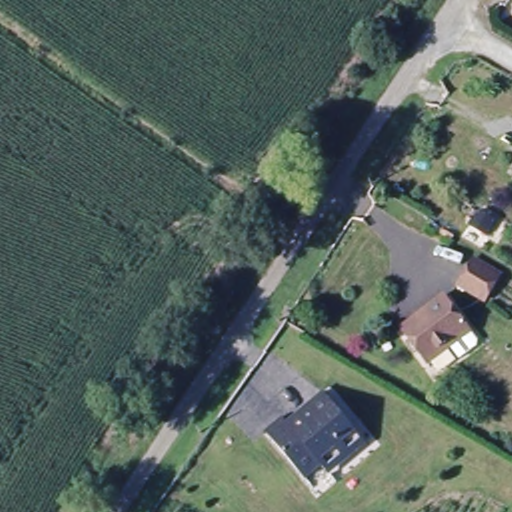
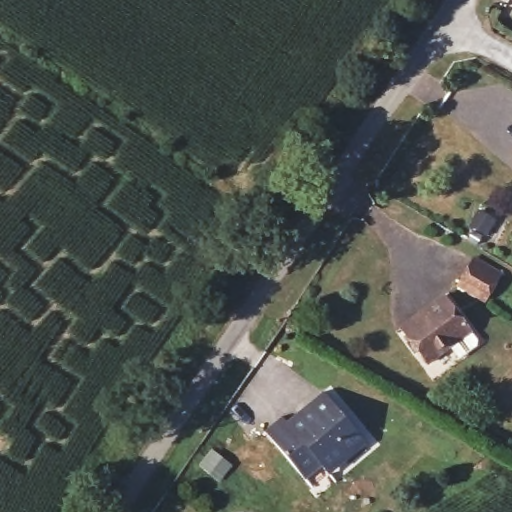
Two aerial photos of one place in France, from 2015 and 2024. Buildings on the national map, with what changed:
unchanged [(496,230),(489,243),(472,233),(480,220),(496,230)]
unchanged [(458,293),(472,267),(476,260),(504,275),(500,281),(486,308),(458,293)]
unchanged [(470,335),(427,369),(408,342),(402,335),(430,315),(446,303),(470,335)]
unchanged [(326,475),(318,467),(312,461),(295,476),(261,435),(280,420),(284,424),(320,395),(328,403),(349,428),(364,445),(326,475)]

